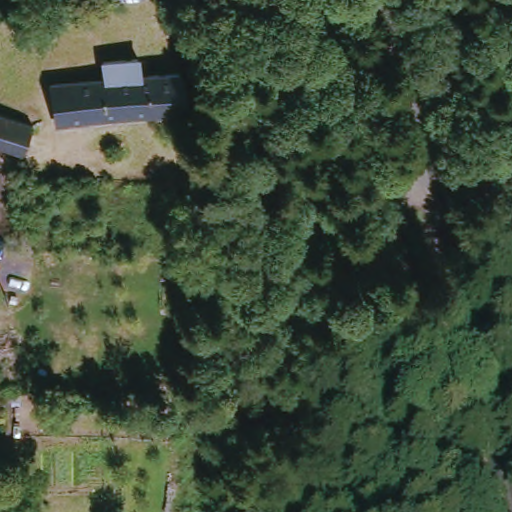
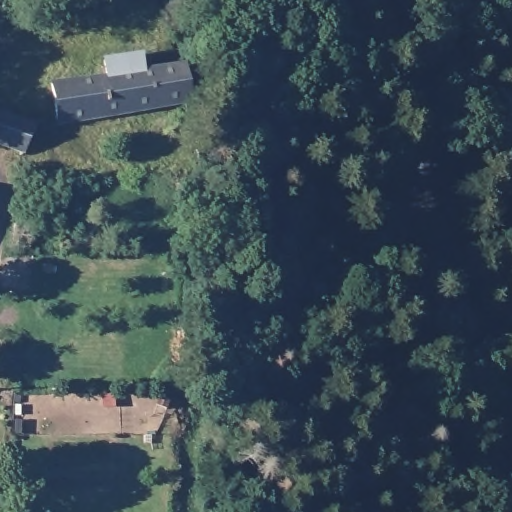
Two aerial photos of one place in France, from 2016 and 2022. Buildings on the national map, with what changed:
unchanged [(50,123),(45,86),(99,77),(97,58),(131,53),(133,73),(171,68),(174,95),(184,94),(185,105),(175,105),(50,123)]
unchanged [(18,154),(16,153),(0,149),(0,117),(27,125),(18,154)]

